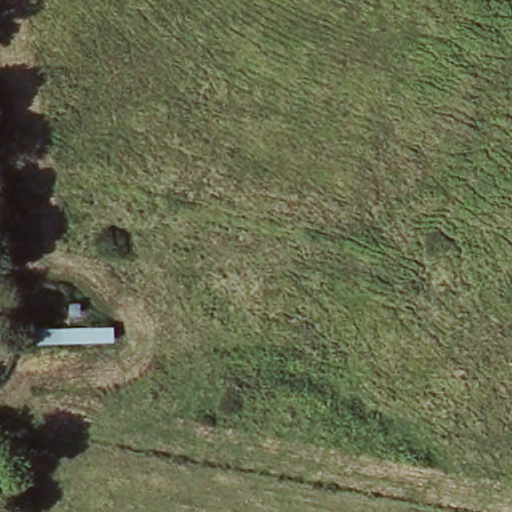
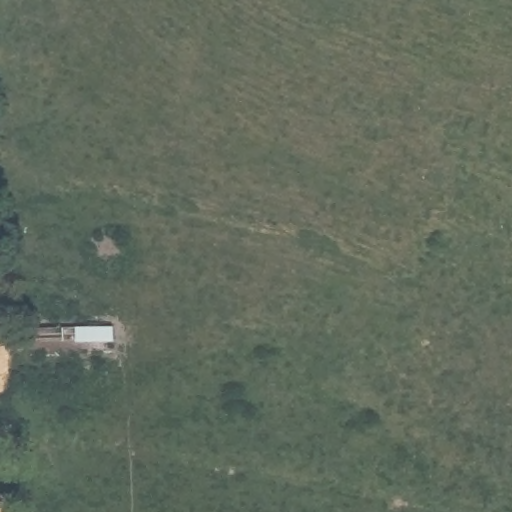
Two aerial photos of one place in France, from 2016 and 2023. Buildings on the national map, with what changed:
unchanged [(32,348),(34,333),(117,330),(119,349),(32,348)]

